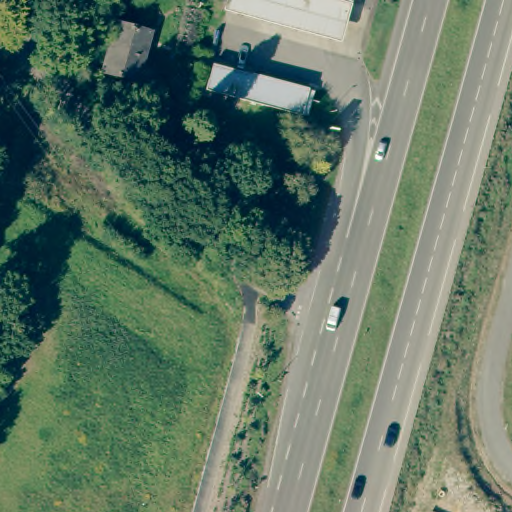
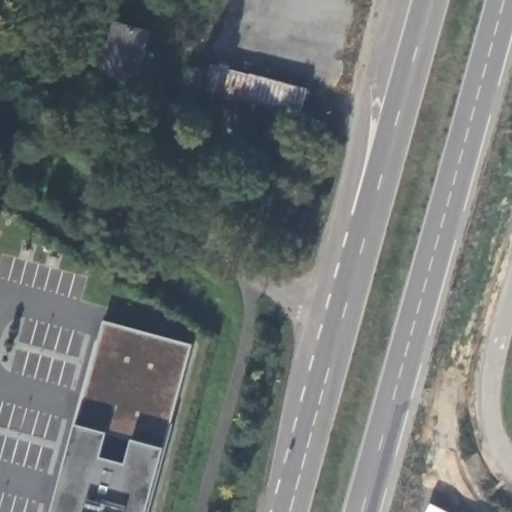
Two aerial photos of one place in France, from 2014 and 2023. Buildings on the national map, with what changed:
demolished [(300,29),(223,10),(225,0),(351,0),(344,40),(300,29)]
unchanged [(102,70),(117,21),(148,30),(134,80),(102,70)]
unchanged [(206,87),(213,63),(251,73),(251,76),(301,92),(294,114),(206,87)]
new [(166,447),(148,512),(53,512),(78,422),(106,320),(194,345),(166,447)]

